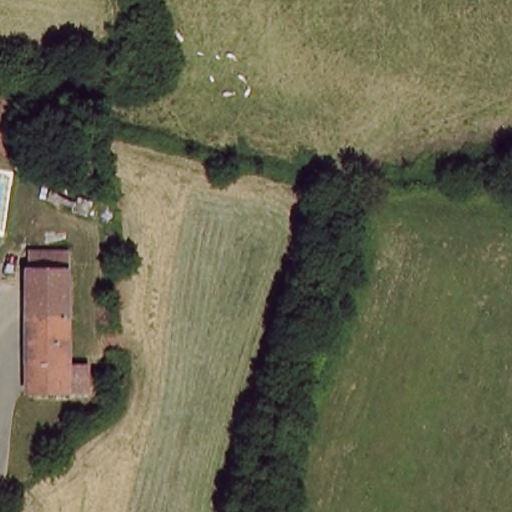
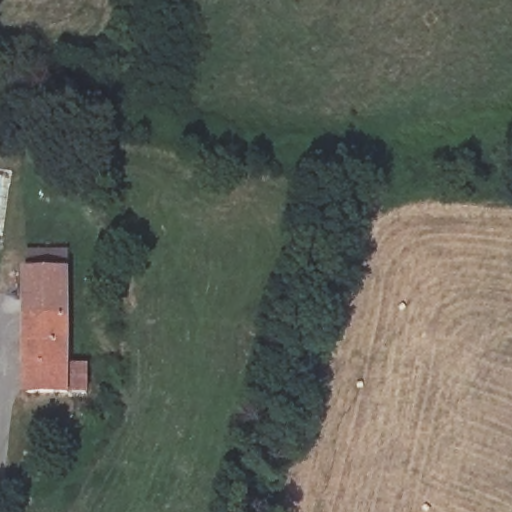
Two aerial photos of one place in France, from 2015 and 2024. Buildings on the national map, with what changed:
unchanged [(76,387),(32,391),(29,272),(69,271),(76,387)]

